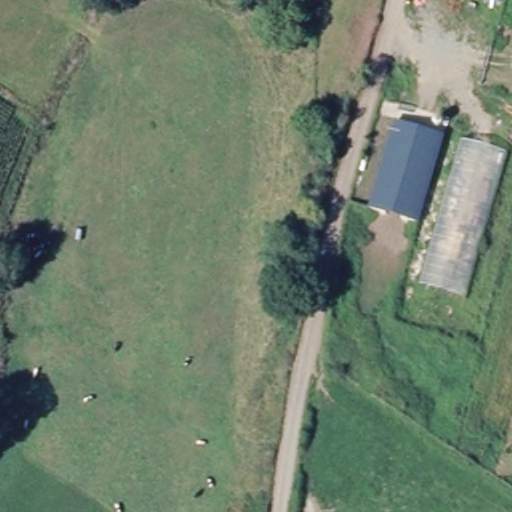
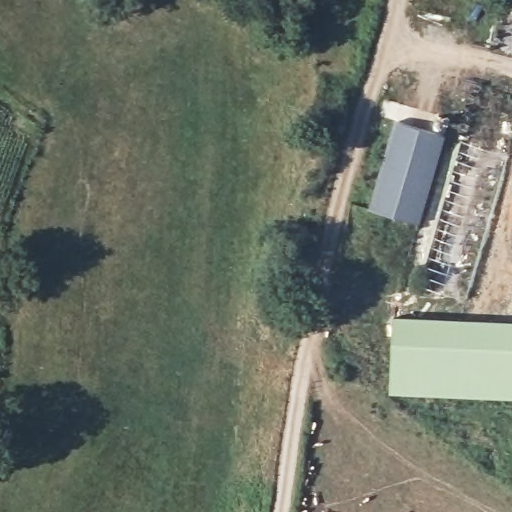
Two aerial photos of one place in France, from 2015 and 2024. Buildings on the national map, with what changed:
unchanged [(417,221),(373,208),(399,120),(443,134),(417,221)]
unchanged [(507,151),(464,297),(421,285),(463,140),(507,151)]
new [(391,316),(512,323),(512,402),(387,395),(391,316)]

